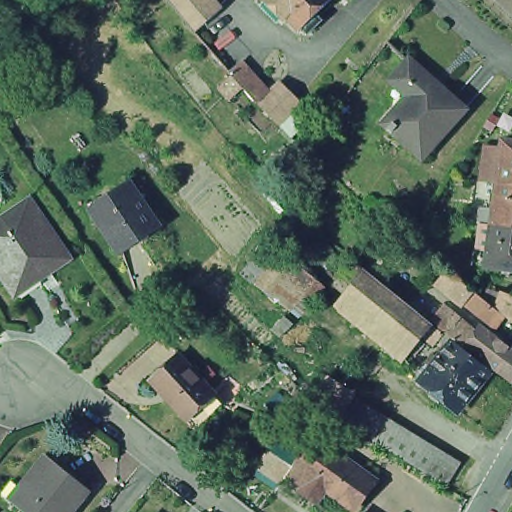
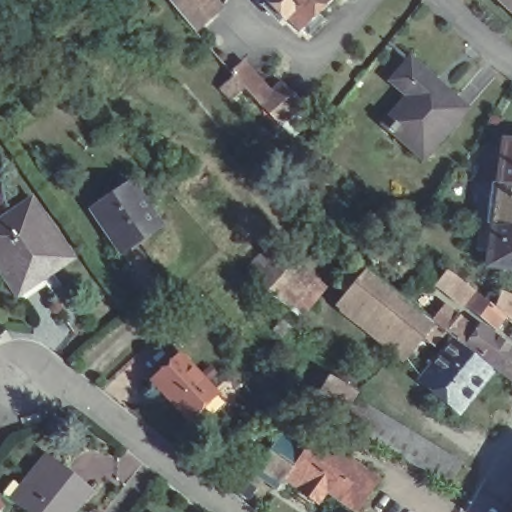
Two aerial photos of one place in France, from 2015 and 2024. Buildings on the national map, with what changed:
unchanged [(198,31),(179,6),(174,0),(218,0),(224,7),(198,31)]
unchanged [(321,15),(327,21),(312,35),(307,29),(304,32),(290,17),(287,20),(270,2),(271,0),(336,0),(321,15)]
unchanged [(503,0),(512,0),(512,9),(503,0)]
unchanged [(383,118),(386,122),(395,113),(408,101),(387,79),(407,59),(431,83),(425,89),(454,119),(429,143),(412,160),(377,124),(383,118)]
unchanged [(284,125),(265,107),(262,104),(262,103),(248,88),(244,92),(233,81),(237,76),(235,73),(247,63),(275,93),(287,82),(307,104),(284,125)]
unchanged [(502,269),(487,267),(489,251),(476,249),(480,223),(492,225),(498,184),(485,182),(489,150),(502,152),(503,142),(512,143),(512,270),(511,270),(510,277),(502,275),(502,269)]
unchanged [(130,189),(159,231),(121,258),(92,215),(130,189)]
unchanged [(71,263),(17,300),(0,275),(0,227),(31,206),(71,263)]
unchanged [(404,216),(422,229),(422,230),(419,235),(414,241),(395,228),(404,216)]
unchanged [(289,251),(324,279),(298,310),(264,282),(289,251)]
unchanged [(452,340),(444,333),(435,345),(422,335),(414,345),(420,349),(413,357),(407,353),(342,300),(367,271),(376,278),(382,270),(437,314),(444,306),(456,315),(477,330),(480,325),(512,350),(512,381),(495,367),(491,371),(457,413),(420,382),(452,340)]
unchanged [(462,307),(442,291),(435,285),(447,270),(455,276),(474,292),(494,308),(501,291),(512,295),(512,322),(505,316),(494,329),(463,305),(462,307)]
unchanged [(509,337),(512,333),(512,339),(509,337)]
unchanged [(212,411),(192,429),(181,416),(147,381),(157,371),(175,354),(209,390),(221,403),(212,411)]
unchanged [(346,424),(345,426),(316,409),(332,383),(360,400),(359,402),(465,467),(452,490),(346,424)]
unchanged [(355,510),(326,489),(317,501),(285,478),(293,466),(294,465),(274,451),(279,444),(295,455),(309,436),(315,440),(317,438),(337,453),(376,480),(355,510)]
unchanged [(22,487),(47,455),(67,471),(66,473),(89,491),(72,512),(26,512),(16,504),(27,491),(22,487)]

